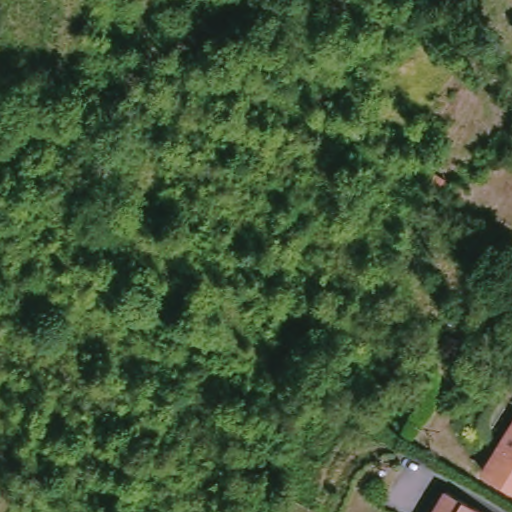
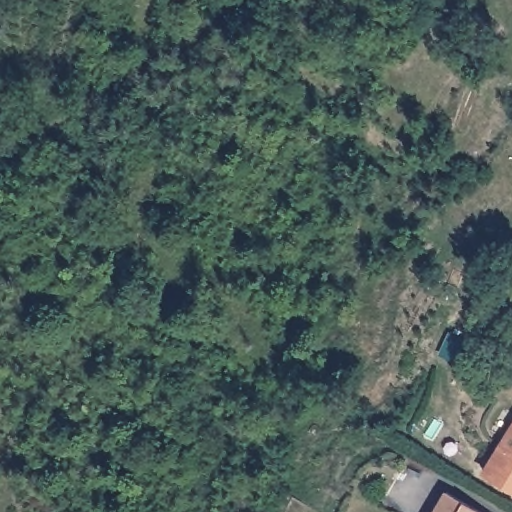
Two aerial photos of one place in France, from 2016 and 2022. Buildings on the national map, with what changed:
unchanged [(481,470),(512,422),(512,491),(481,470)]
unchanged [(475,512),(427,512),(439,491),(475,512)]

